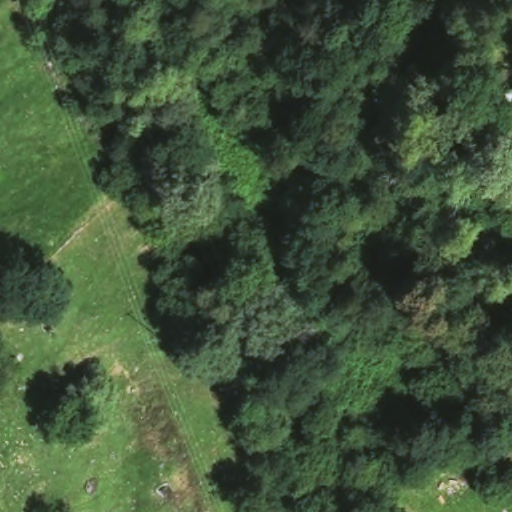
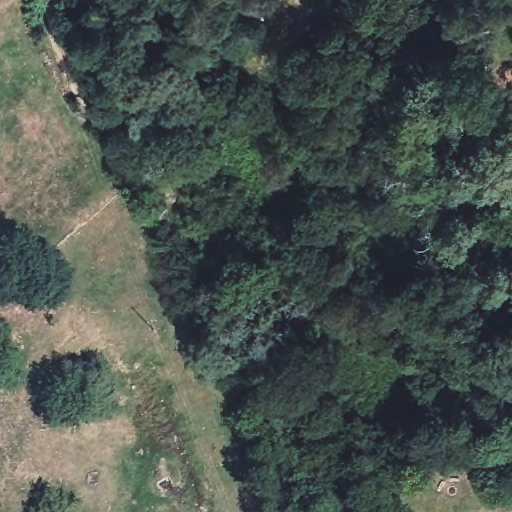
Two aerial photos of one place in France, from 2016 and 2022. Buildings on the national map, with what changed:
[]

